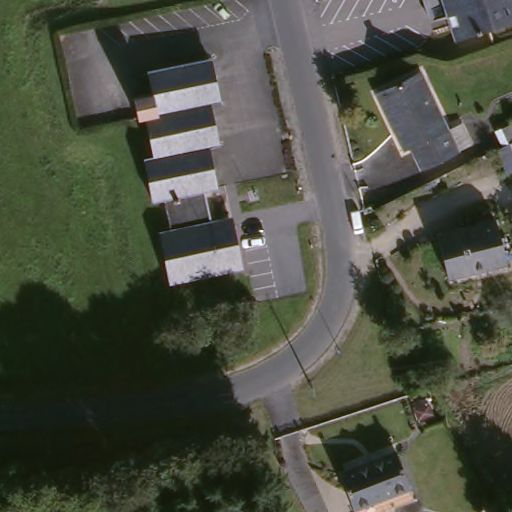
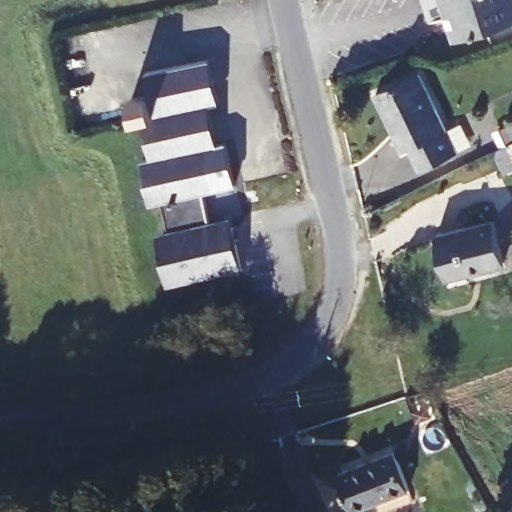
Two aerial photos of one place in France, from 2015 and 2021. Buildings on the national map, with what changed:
unchanged [(484,32),(450,41),(439,0),(512,0),(512,25),(484,32)]
unchanged [(224,67),(232,108),(221,111),(227,150),(218,152),(226,194),(214,196),(222,233),(242,231),(250,272),(178,285),(169,241),(182,240),(175,203),(162,205),(154,164),(166,162),(160,122),(151,124),(149,108),(169,103),(165,75),(224,67)]
unchanged [(467,144),(451,153),(417,170),(396,126),(388,129),(373,98),(415,78),(441,132),(457,124),(467,144)]
unchanged [(505,180),(490,133),(512,124),(512,177),(505,180)]
unchanged [(494,220),(506,261),(474,270),(475,276),(447,284),(433,237),(494,220)]
unchanged [(408,492),(361,512),(354,512),(337,473),(391,450),(408,492)]

